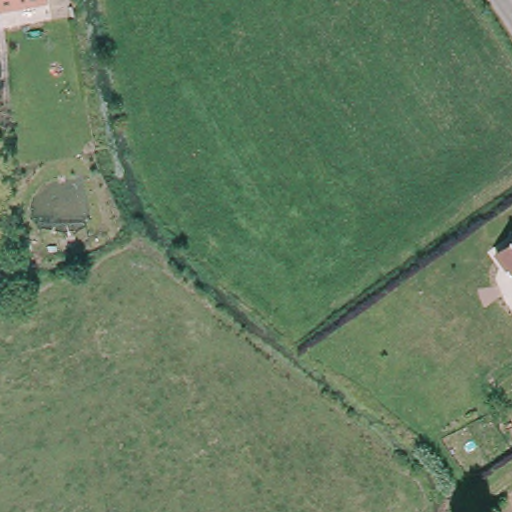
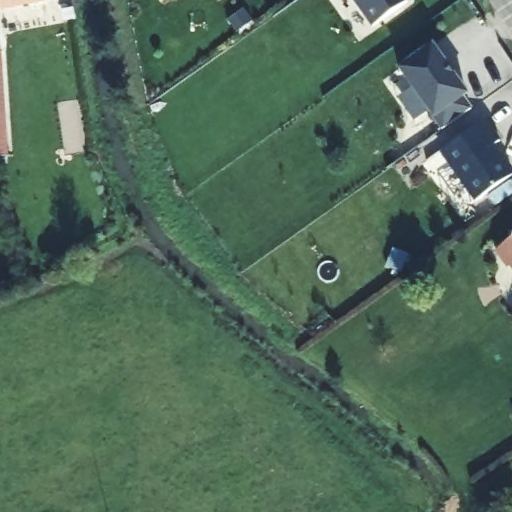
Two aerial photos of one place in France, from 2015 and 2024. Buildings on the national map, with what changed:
unchanged [(1,10),(0,0),(47,0),(47,6),(1,10)]
new [(371,26),(352,0),(405,0),(404,2),(371,26)]
new [(430,45),(464,94),(460,97),(469,109),(441,129),(397,69),(430,45)]
new [(0,156),(0,51),(2,51),(9,155),(0,156)]
new [(484,120),(498,140),(491,145),(511,174),(474,200),(439,150),(484,120)]
unchanged [(509,259),(499,240),(512,232),(512,257),(509,259)]

